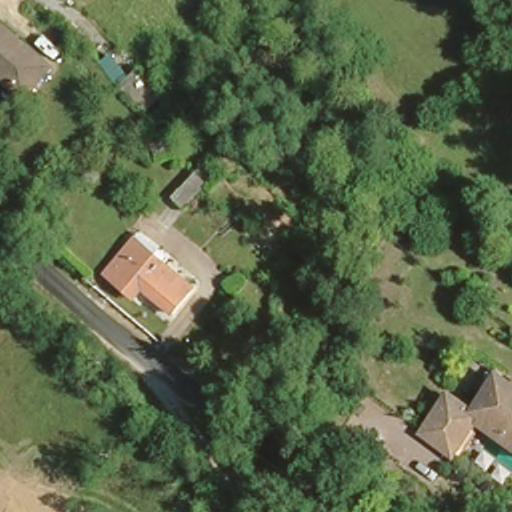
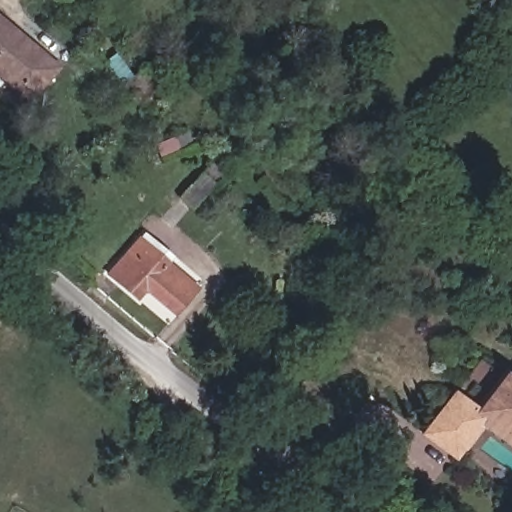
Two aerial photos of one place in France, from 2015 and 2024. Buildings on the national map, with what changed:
unchanged [(48,61),(22,95),(0,76),(0,18),(48,61)]
unchanged [(127,89),(97,51),(127,31),(154,68),(127,89)]
unchanged [(180,149),(160,174),(145,163),(168,137),(180,149)]
unchanged [(153,263),(167,248),(201,278),(175,310),(144,282),(132,295),(104,267),(128,240),(153,263)]
unchanged [(455,460),(418,436),(451,392),(478,408),(503,371),(512,377),(512,449),(481,428),(455,460)]

